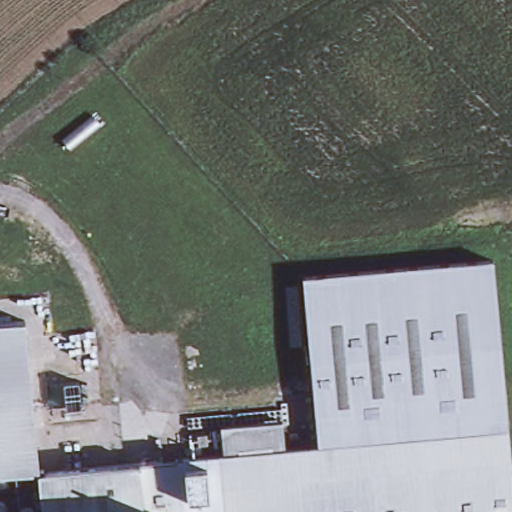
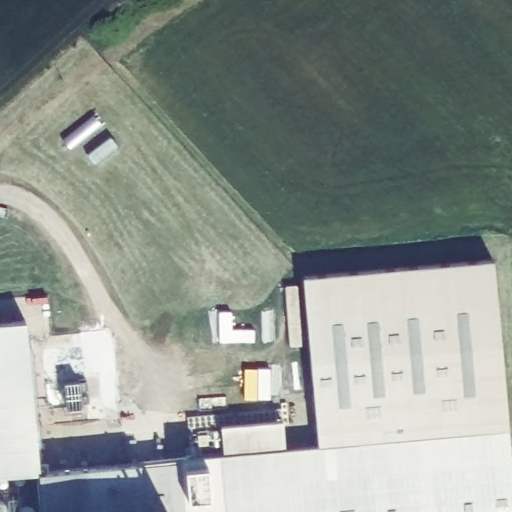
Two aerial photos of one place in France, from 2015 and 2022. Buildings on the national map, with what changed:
unchanged [(318,445),(303,283),(303,276),(493,260),(497,305),(508,428),(318,445)]
unchanged [(39,471),(0,475),(0,322),(25,319),(39,471)]
unchanged [(508,428),(512,473),(512,512),(43,512),(39,471),(318,445),(508,428)]
unchanged [(43,512),(0,512),(0,475),(39,471),(43,512)]

